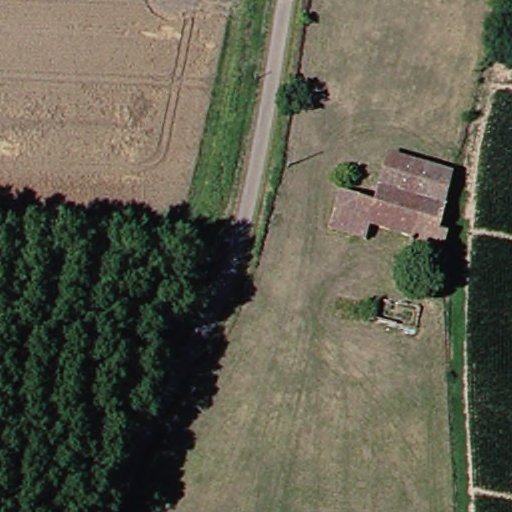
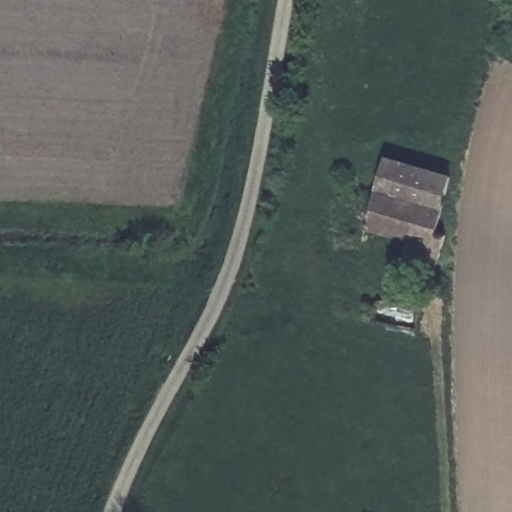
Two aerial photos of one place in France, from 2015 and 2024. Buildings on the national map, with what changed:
unchanged [(387,181),(395,154),(456,173),(440,231),(450,235),(444,260),(370,241),(372,237),(387,181)]
unchanged [(333,225),(348,171),(387,181),(372,237),(333,225)]

